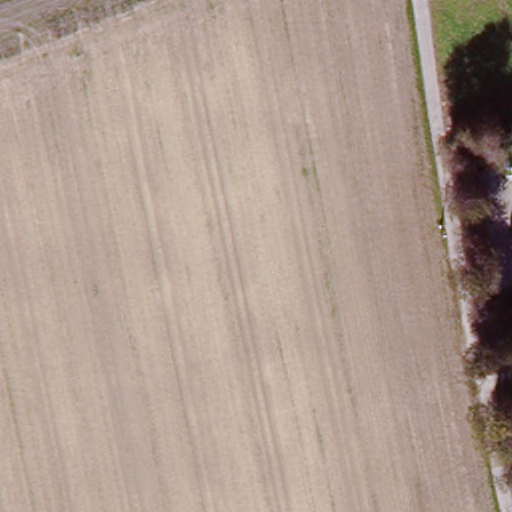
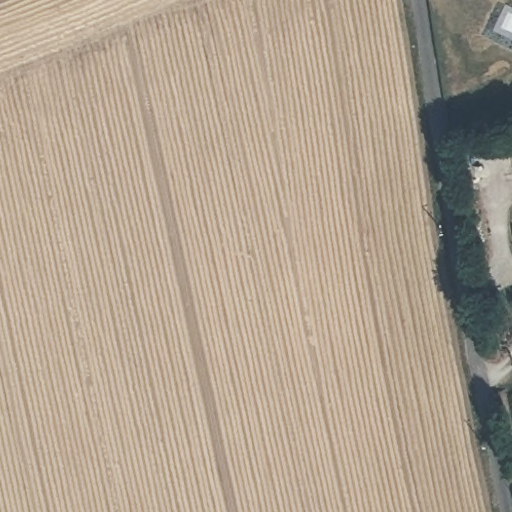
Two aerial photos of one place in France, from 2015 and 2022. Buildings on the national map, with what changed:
unchanged [(476,189),(467,146),(492,142),(501,184),(476,189)]

